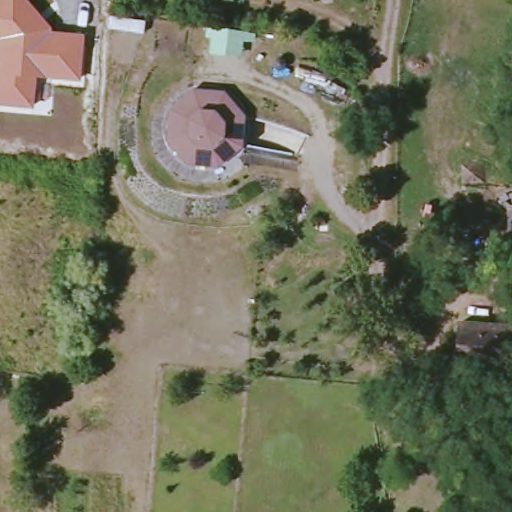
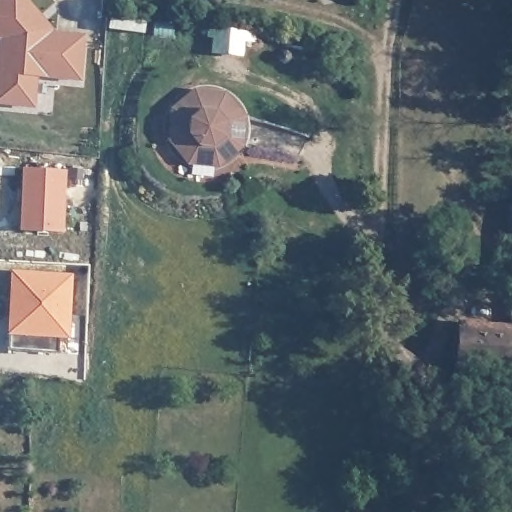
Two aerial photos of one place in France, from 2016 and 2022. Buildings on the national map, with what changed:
unchanged [(84,35),(81,79),(38,77),(34,111),(0,106),(0,0),(29,0),(54,32),(84,35)]
unchanged [(250,135),(234,163),(203,170),(172,154),(165,124),(182,95),(212,89),(240,102),(250,135)]
new [(21,229),(23,168),(68,170),(63,231),(21,229)]
new [(61,310),(59,351),(41,350),(41,333),(10,331),(11,308),(18,309),(20,271),(71,275),(69,312),(61,310)]
unchanged [(512,327),(512,367),(462,364),(465,323),(512,327)]

